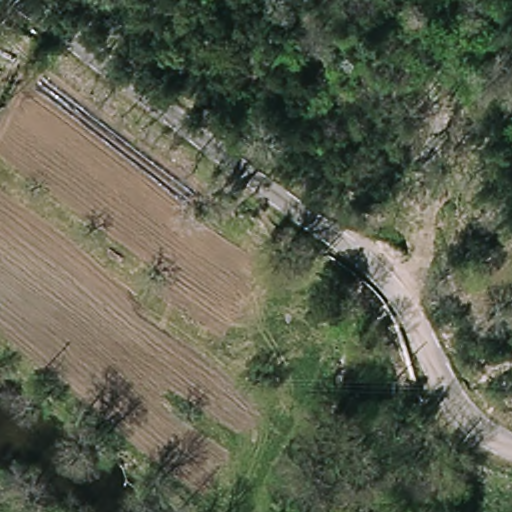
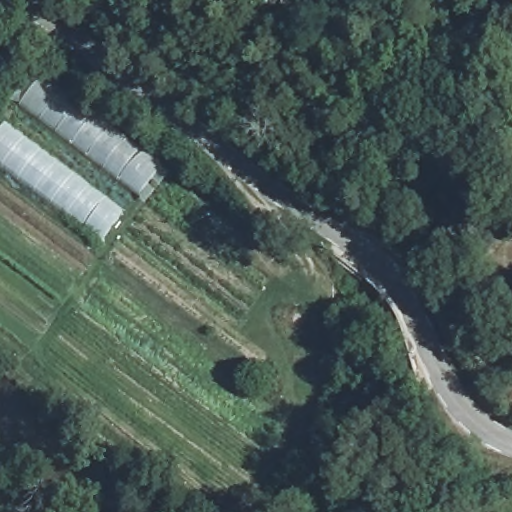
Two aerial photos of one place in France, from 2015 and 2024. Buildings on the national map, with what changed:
new [(43,71),(165,163),(140,198),(18,107),(43,71)]
new [(127,211),(102,245),(0,168),(0,127),(7,119),(127,211)]

